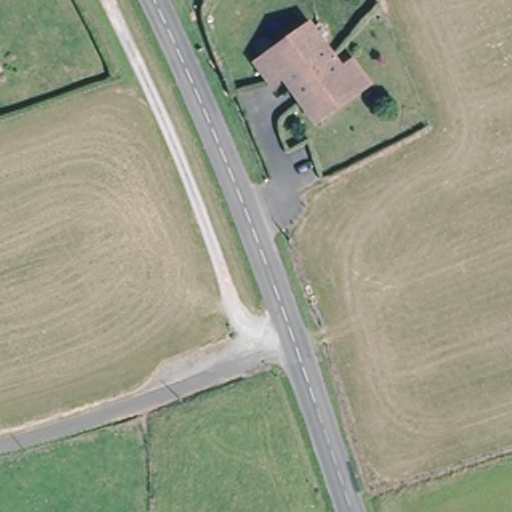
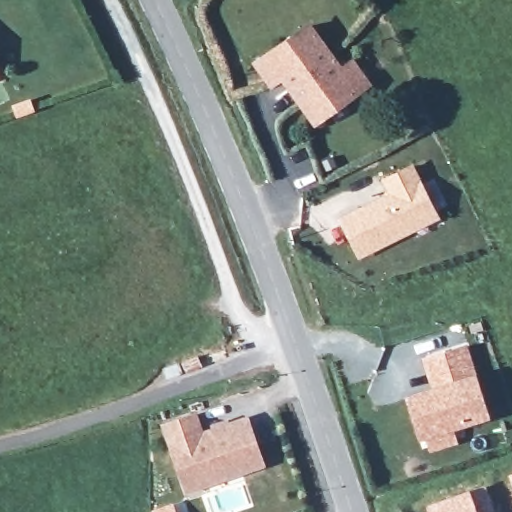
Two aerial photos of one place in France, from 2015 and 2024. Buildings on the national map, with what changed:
unchanged [(369,83),(358,91),(317,120),(283,74),(272,81),(258,62),(270,55),(310,25),(343,70),(354,62),(369,83)]
new [(413,162),(441,218),(360,258),(339,217),(388,193),(381,179),(413,162)]
new [(476,372),(491,418),(455,429),(458,443),(430,452),(426,437),(420,438),(406,395),(431,386),(422,357),(466,343),(476,372)]
new [(196,410),(203,430),(211,426),(210,423),(230,417),(231,420),(249,414),(266,463),(185,491),(161,422),(196,410)]
new [(512,481),(510,474),(512,473),(512,481)]
new [(496,512),(430,512),(426,504),(486,484),(496,512)]

